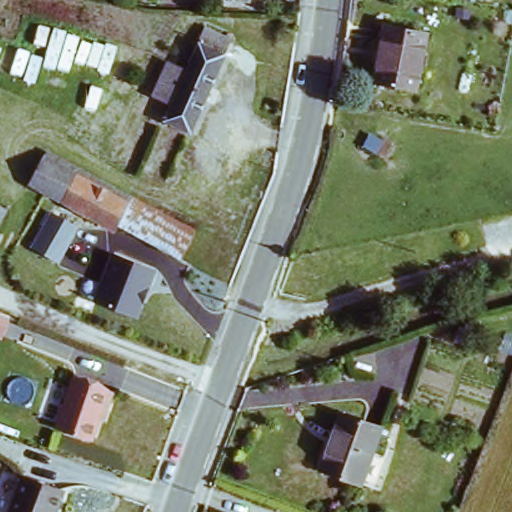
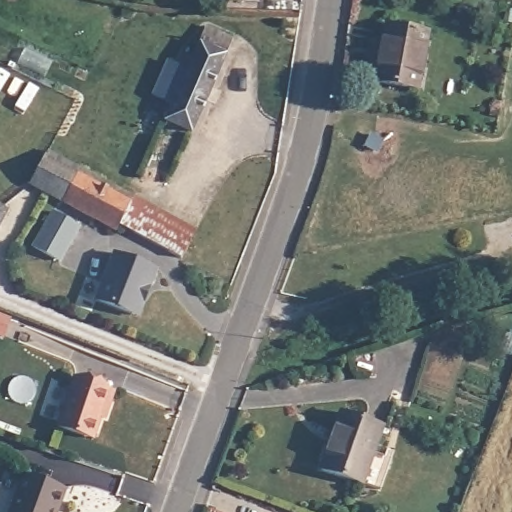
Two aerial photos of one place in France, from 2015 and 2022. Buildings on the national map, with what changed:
unchanged [(420,93),(376,86),(386,26),(429,33),(420,93)]
unchanged [(206,29),(233,41),(223,61),(186,137),(159,127),(169,106),(148,95),(166,60),(186,69),(196,50),(206,29)]
unchanged [(133,197),(129,206),(116,228),(113,234),(29,187),(46,152),(133,197)]
unchanged [(197,230),(180,262),(116,228),(129,206),(133,197),(197,230)]
unchanged [(0,206),(4,208),(0,216),(0,206)]
unchanged [(81,230),(59,267),(30,250),(49,214),(81,230)]
unchanged [(158,275),(139,321),(94,301),(113,255),(158,275)]
unchanged [(63,430),(51,425),(69,376),(114,392),(111,402),(107,412),(103,411),(95,427),(89,440),(79,435),(63,430)]
unchanged [(379,423),(356,483),(319,469),(343,408),(379,423)]
unchanged [(27,475),(48,483),(51,484),(66,488),(58,512),(11,512),(15,501),(15,500),(27,475)]

